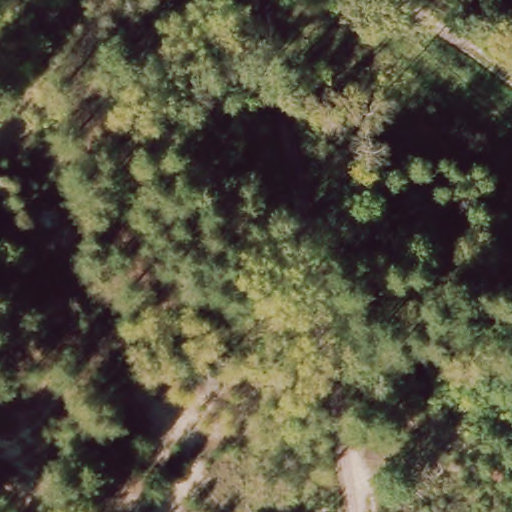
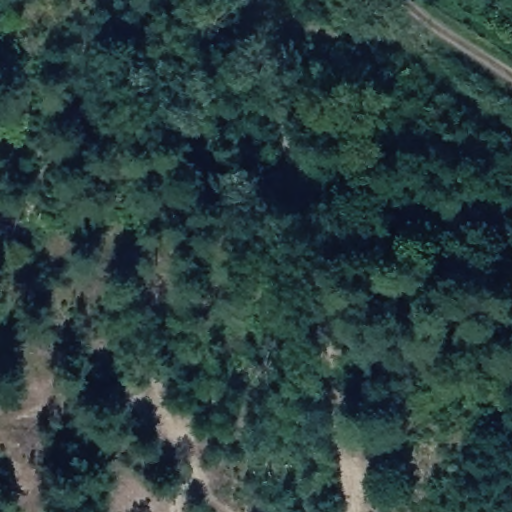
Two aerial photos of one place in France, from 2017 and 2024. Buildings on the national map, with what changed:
unchanged [(261,74),(280,117),(222,146),(208,116),(238,102),(232,86),(261,74)]

